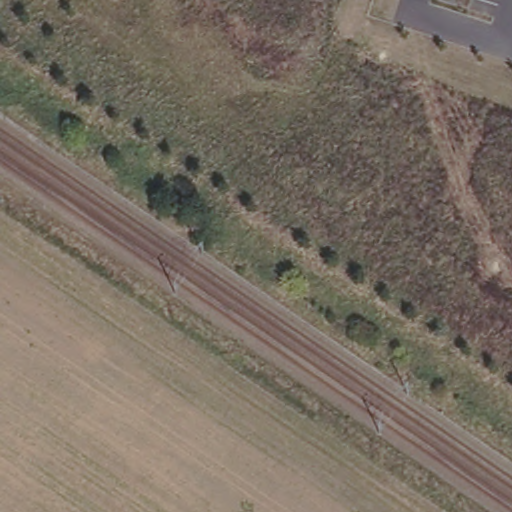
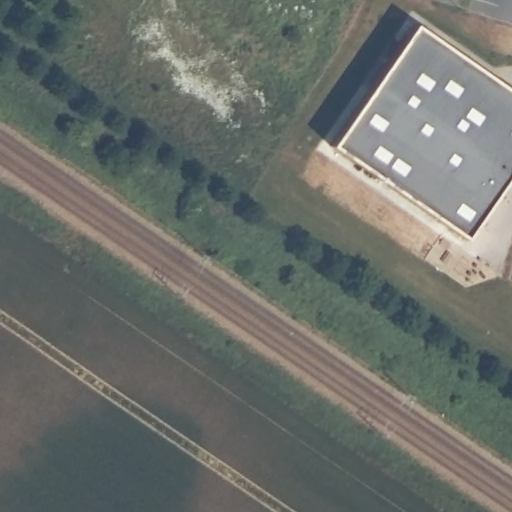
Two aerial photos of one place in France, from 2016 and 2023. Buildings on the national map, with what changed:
new [(413,23),(512,95),(512,166),(463,240),(326,145),(413,23)]

